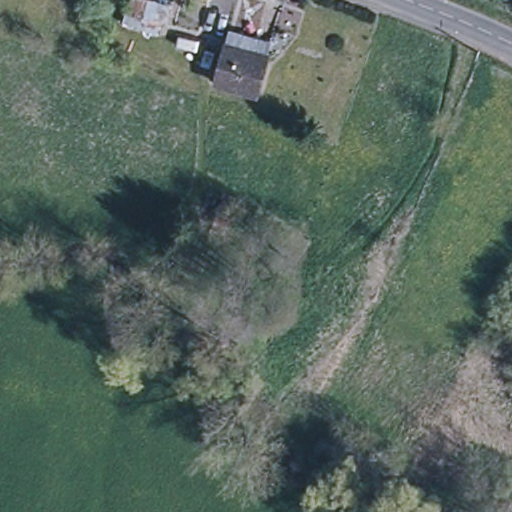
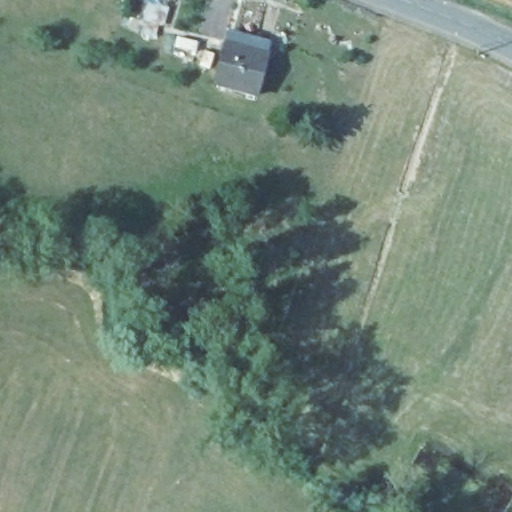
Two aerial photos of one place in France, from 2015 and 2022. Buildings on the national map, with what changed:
unchanged [(169,8),(164,27),(160,26),(157,36),(122,27),(125,17),(128,0),(171,0),(169,8)]
unchanged [(265,51),(257,91),(216,80),(225,41),(265,51)]

